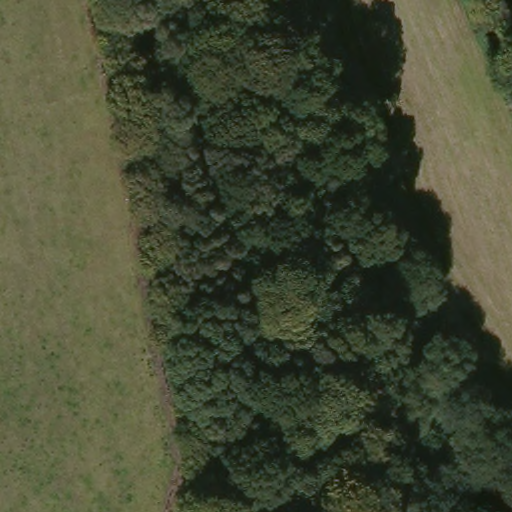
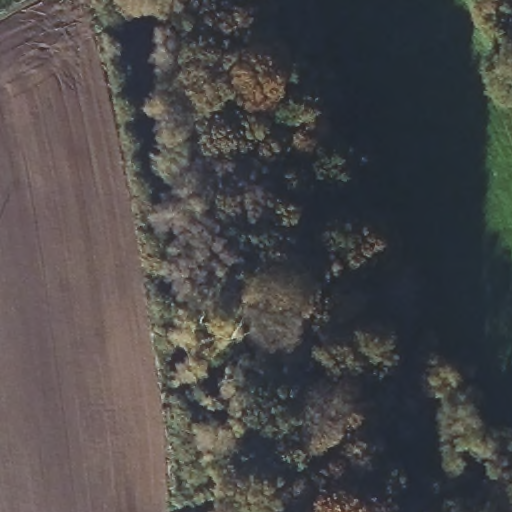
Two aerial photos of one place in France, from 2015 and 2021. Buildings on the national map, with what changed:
[]

